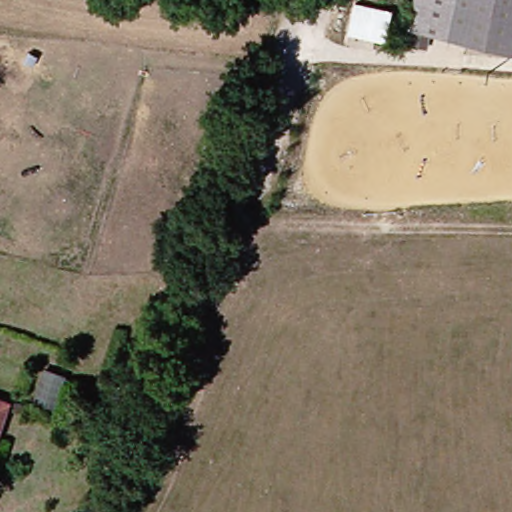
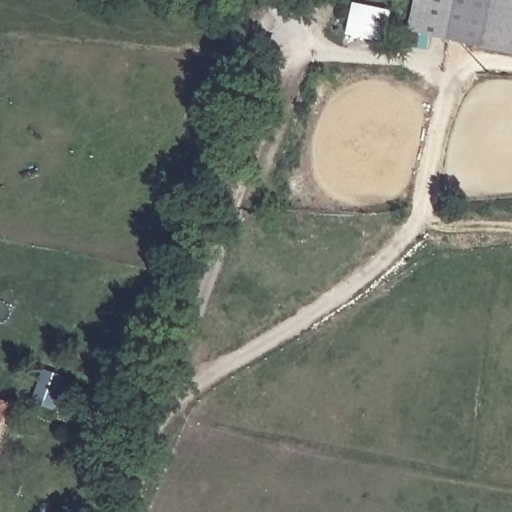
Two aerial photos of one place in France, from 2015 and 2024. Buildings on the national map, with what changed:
unchanged [(454,40),(413,29),(419,0),(512,0),(512,53),(454,40)]
unchanged [(0,436),(0,398),(12,402),(0,436)]

